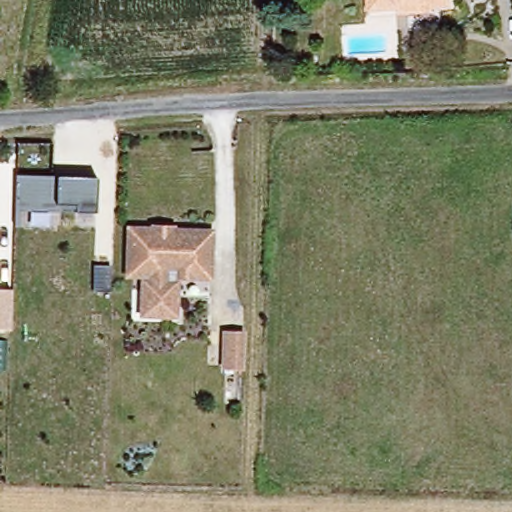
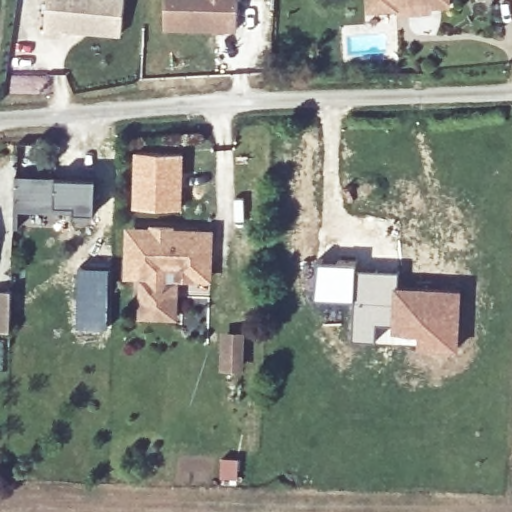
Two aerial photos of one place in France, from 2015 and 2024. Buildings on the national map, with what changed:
new [(121,33),(45,26),(47,0),(124,0),(121,33)]
new [(238,31),(164,30),(165,0),(239,0),(238,31)]
unchanged [(411,17),(409,10),(375,12),(374,0),(456,0),(456,5),(442,5),(445,15),(411,17)]
new [(133,149),(184,152),(182,209),(131,207),(133,149)]
unchanged [(76,203),(55,203),(55,211),(16,209),(16,175),(57,176),(97,176),(96,211),(76,211),(76,203)]
unchanged [(139,279),(124,278),(126,225),(149,226),(150,222),(176,222),(176,227),(214,229),(212,283),(180,282),(179,318),(139,317),(139,279)]
new [(317,258),(357,261),(357,266),(355,300),(315,297),(317,258)]
new [(79,262),(111,264),(110,326),(77,325),(79,262)]
new [(355,300),(357,266),(400,268),(399,282),(396,282),(390,331),(385,331),(378,332),(377,342),(352,339),(355,300)]
new [(396,282),(399,282),(463,287),(458,349),(417,346),(417,334),(390,331),(396,282)]
unchanged [(11,330),(0,330),(0,288),(11,288),(11,330)]
unchanged [(227,333),(242,333),(241,355),(241,369),(225,368),(226,355),(227,333)]
demolished [(238,377),(254,377),(253,392),(237,391),(238,377)]

